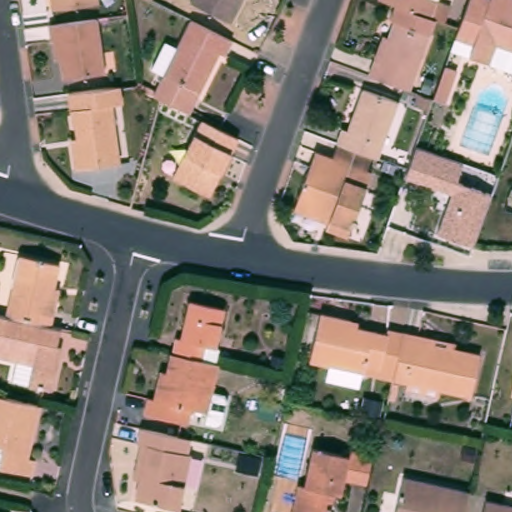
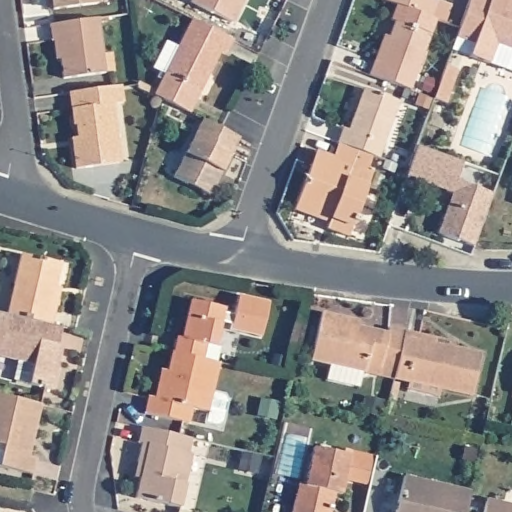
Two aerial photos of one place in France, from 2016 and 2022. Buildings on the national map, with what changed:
unchanged [(51,9),(50,0),(97,0),(97,4),(51,9)]
unchanged [(191,4),(194,0),(246,0),(234,26),(191,4)]
unchanged [(395,4),(384,0),(440,0),(450,4),(445,21),(434,18),(395,4)]
unchanged [(451,50),(455,39),(460,25),(470,0),(512,0),(512,73),(487,64),(467,56),(451,50)]
unchanged [(389,38),(395,21),(389,19),(395,4),(434,18),(409,88),(367,74),(373,59),(382,35),(389,38)]
unchanged [(51,41),(49,41),(47,25),(96,19),(102,73),(62,79),(60,59),(54,60),(51,41)]
unchanged [(187,21),(232,43),(224,60),(215,55),(186,115),(160,103),(151,98),(187,21)]
unchanged [(457,66),(450,85),(445,99),(433,94),(434,93),(438,81),(445,61),(457,66)]
unchanged [(79,138),(77,124),(74,125),(70,94),(121,88),(123,104),(114,105),(121,161),(78,166),(75,146),(73,138),(79,138)]
unchanged [(370,156),(337,144),(331,143),(336,128),(343,129),(358,88),(395,100),(375,158),(370,156)]
unchanged [(216,133),(233,141),(204,201),(166,183),(196,123),(216,133)]
unchanged [(295,207),(315,153),(332,159),(337,144),(370,156),(365,170),(370,173),(346,237),(325,230),(327,223),(293,211),(295,207)]
unchanged [(473,247),(438,234),(451,192),(406,176),(416,145),(465,161),(458,183),(492,194),(473,247)]
unchanged [(51,314),(47,329),(0,319),(15,258),(55,267),(50,291),(55,293),(51,314)]
unchanged [(167,357),(171,341),(177,343),(185,305),(220,313),(211,351),(215,352),(212,367),(199,364),(167,357)]
unchanged [(357,366),(355,381),(321,374),(325,359),(305,354),(316,307),(348,313),(355,314),(353,320),(381,327),(382,323),(398,325),(388,372),(387,373),(374,370),(360,367),(357,366)]
unchanged [(56,357),(49,393),(22,388),(27,369),(0,362),(0,319),(47,329),(56,331),(50,356),(56,357)]
unchanged [(401,383),(402,376),(388,372),(398,325),(429,332),(450,337),(449,342),(476,348),(467,389),(435,383),(433,389),(401,383)]
unchanged [(151,386),(154,374),(161,377),(165,357),(167,357),(199,364),(212,367),(215,368),(204,415),(189,412),(185,428),(139,418),(142,401),(149,402),(151,386)]
unchanged [(392,384),(390,394),(383,393),(385,383),(392,384)]
unchanged [(29,479),(0,472),(0,401),(35,409),(28,442),(24,462),(32,464),(29,479)]
unchanged [(130,466),(134,448),(130,448),(134,431),(186,443),(183,457),(187,459),(175,512),(173,512),(129,502),(132,484),(126,482),(130,466)]
unchanged [(331,512),(290,512),(297,483),(304,484),(312,447),(350,456),(351,451),(373,455),(367,484),(345,480),(342,494),(335,493),(332,506),(331,512)]
unchanged [(398,475),(466,490),(461,512),(390,512),(398,475)]
unchanged [(481,499),(512,505),(512,512),(478,512),(481,499)]

